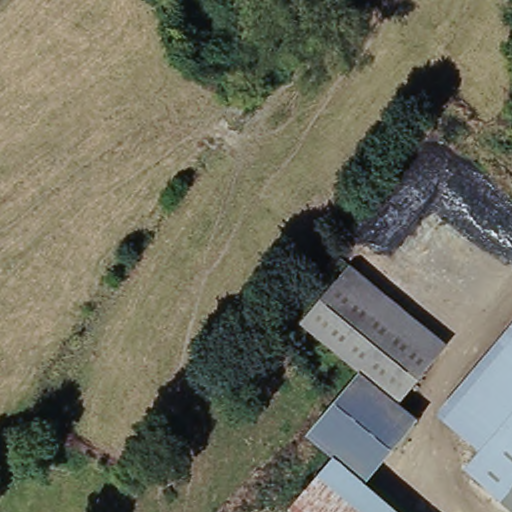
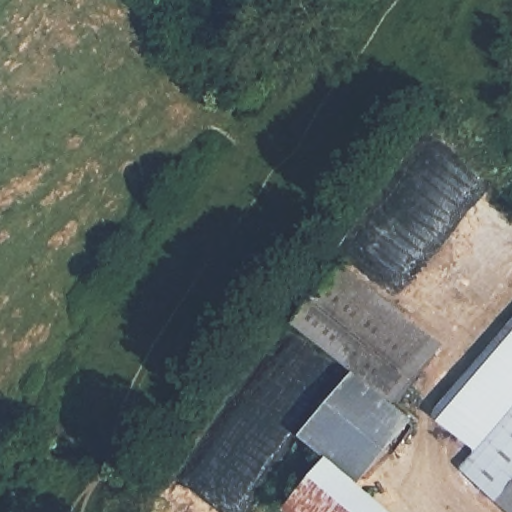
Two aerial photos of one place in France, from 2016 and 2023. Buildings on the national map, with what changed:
unchanged [(448,343),(403,400),(422,415),(368,480),(404,512),(289,512),(330,457),(306,435),(361,371),(301,322),(351,261),(448,343)]
unchanged [(512,350),(512,477),(480,450),(452,423),(512,350)]
unchanged [(512,498),(506,505),(465,467),(480,450),(512,477),(512,498)]
unchanged [(512,498),(512,510),(506,505),(512,498)]

